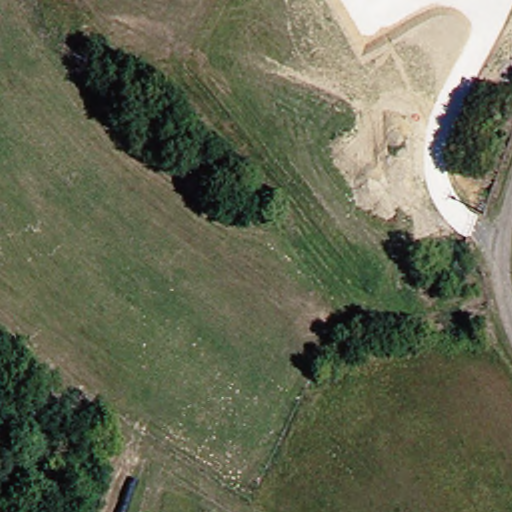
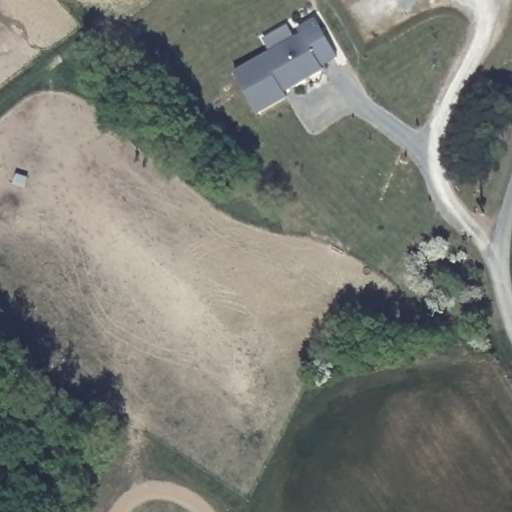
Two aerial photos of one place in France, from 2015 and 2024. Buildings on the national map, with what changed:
new [(339,59),(324,67),(326,71),(287,92),(289,98),(259,115),(235,72),(301,34),(298,27),(316,17),(339,59)]

